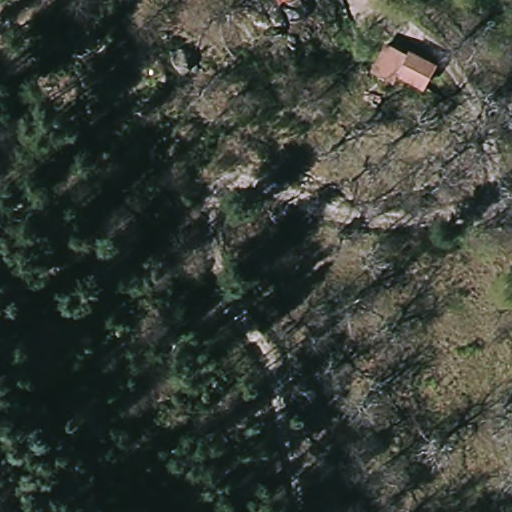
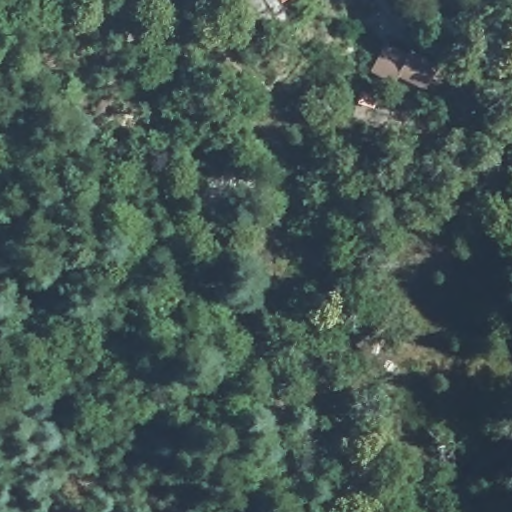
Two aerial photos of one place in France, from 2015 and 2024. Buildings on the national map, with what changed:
unchanged [(392,40),(408,54),(417,45),(445,66),(427,93),(377,61),(392,40)]

